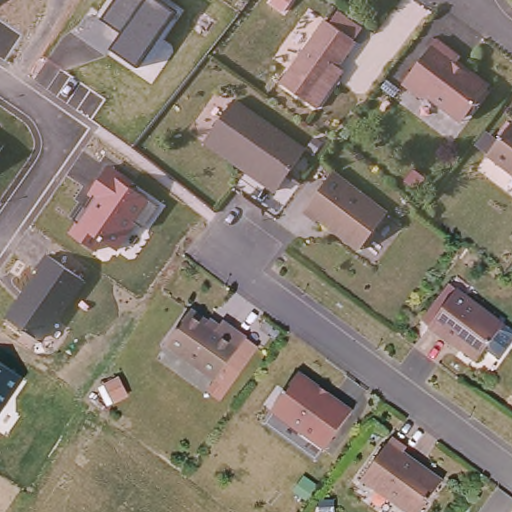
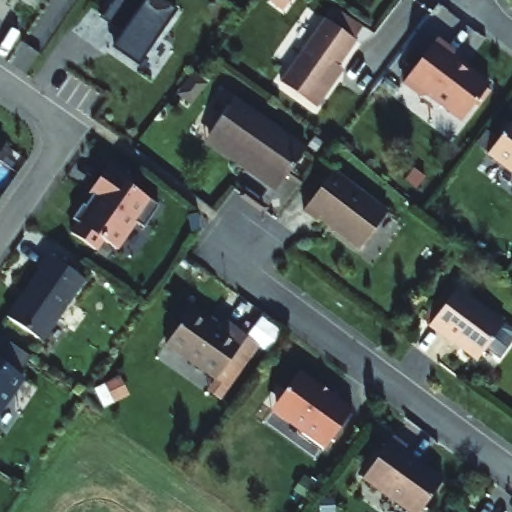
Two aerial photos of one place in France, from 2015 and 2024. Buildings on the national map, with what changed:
unchanged [(175,13),(137,66),(112,48),(122,33),(101,19),(115,0),(157,0),(175,13)]
unchanged [(356,41),(331,76),(336,79),(316,108),(280,83),(325,19),(356,41)]
unchanged [(431,44),(455,62),(450,69),(461,76),(465,76),(485,91),(460,122),(453,123),(425,101),(416,103),(397,88),(431,44)]
unchanged [(203,135),(226,103),(298,153),(272,190),(259,181),(200,140),(203,135)]
unchanged [(512,122),(512,174),(487,155),(512,122)]
unchanged [(0,150),(0,141),(5,144),(0,150)]
unchanged [(87,195),(110,166),(136,183),(132,188),(158,207),(143,229),(137,225),(117,251),(105,241),(96,251),(68,231),(76,221),(73,219),(83,205),(85,206),(92,197),(87,195)]
unchanged [(387,214),(360,250),(318,219),(316,221),(303,211),(333,172),(387,214)]
unchanged [(85,281),(42,342),(6,317),(48,256),(85,281)]
unchanged [(452,289),(500,324),(472,361),(448,342),(447,343),(425,326),(452,289)]
unchanged [(186,309),(213,328),(218,321),(241,338),(211,380),(161,344),(186,309)]
unchanged [(0,413),(0,363),(24,379),(0,413)]
unchanged [(324,396),(325,394),(348,411),(318,450),(295,433),(294,428),(272,412),(273,403),(293,373),(324,396)]
unchanged [(406,448),(404,452),(443,481),(421,512),(408,512),(362,479),(392,437),(406,448)]

